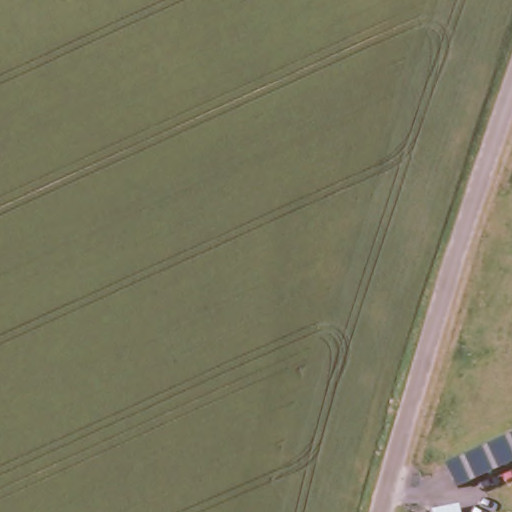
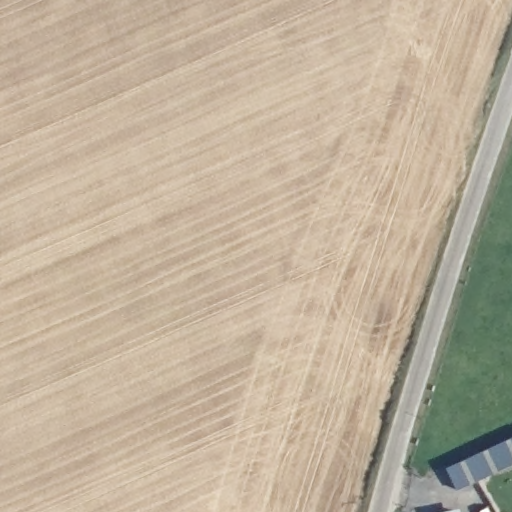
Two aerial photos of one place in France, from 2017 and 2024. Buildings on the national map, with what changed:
unchanged [(467,486),(456,490),(447,468),(456,465),(512,442),(512,468),(467,486)]

